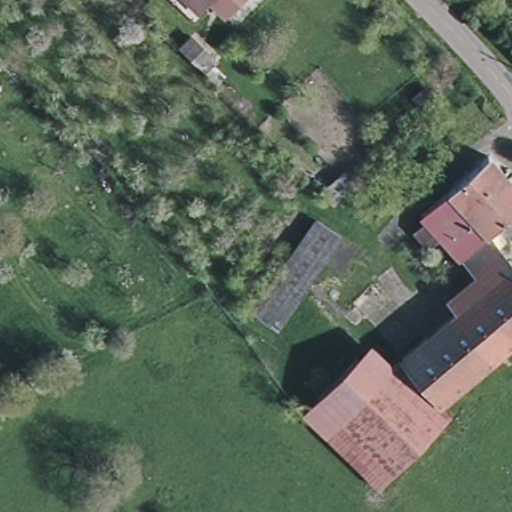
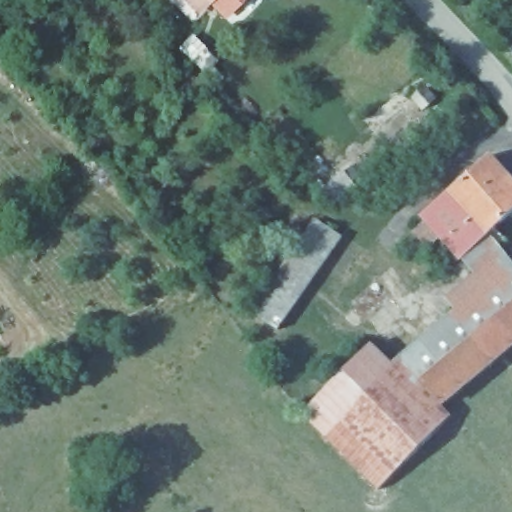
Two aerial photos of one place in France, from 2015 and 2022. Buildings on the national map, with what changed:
unchanged [(190,0),(202,0),(196,6),(190,0)]
unchanged [(221,12),(210,0),(234,0),(221,12)]
unchanged [(188,39),(208,57),(204,60),(211,66),(202,74),(178,50),(188,39)]
unchanged [(498,248),(512,265),(485,288),(459,257),(423,215),(449,192),(489,156),(512,183),(512,214),(495,227),(507,240),(498,248)]
unchanged [(346,171),(356,188),(333,205),(321,189),(346,171)]
unchanged [(318,219),(341,236),(278,329),(253,311),(318,219)]
unchanged [(485,288),(512,265),(512,346),(442,405),(403,359),(485,288)]
unchanged [(373,345),(394,367),(324,437),(301,416),(373,345)]
unchanged [(452,417),(378,490),(324,437),(394,367),(403,359),(442,405),(452,417)]

